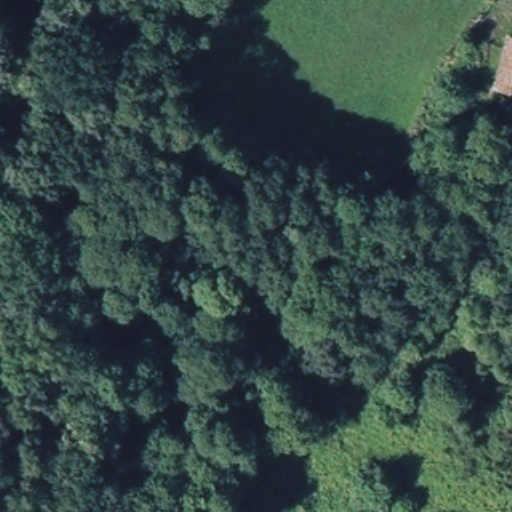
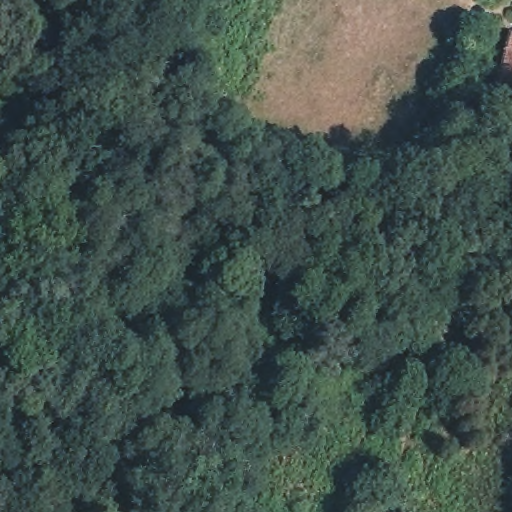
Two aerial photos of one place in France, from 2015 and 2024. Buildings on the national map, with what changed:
unchanged [(512,28),(512,86),(497,82),(511,27),(512,28)]

